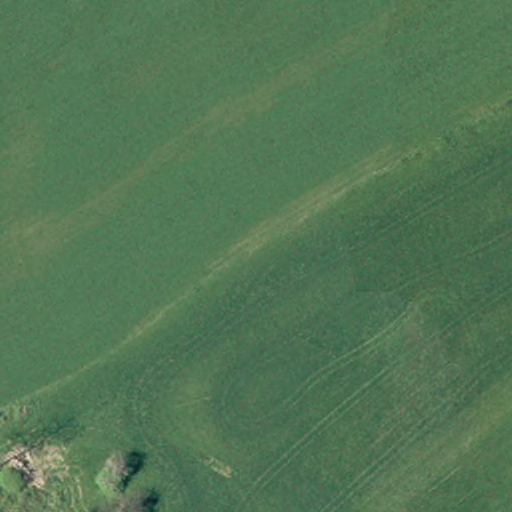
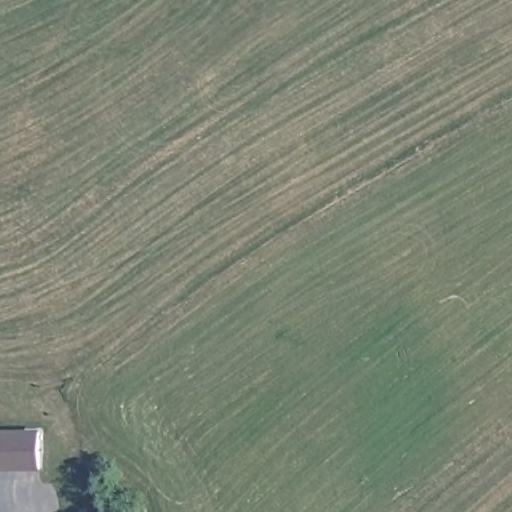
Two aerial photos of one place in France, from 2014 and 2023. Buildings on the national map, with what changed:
new [(0,429),(40,427),(41,469),(0,469),(0,429)]

